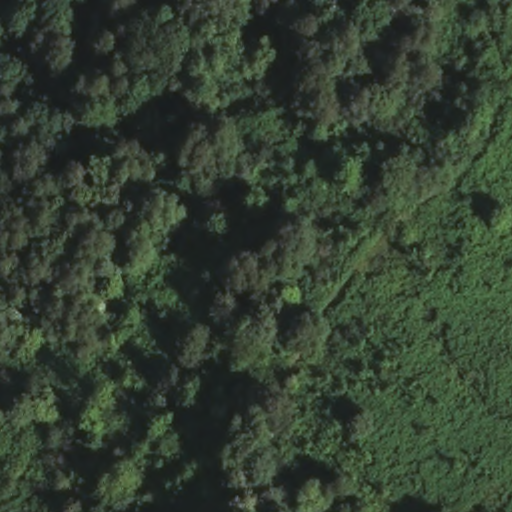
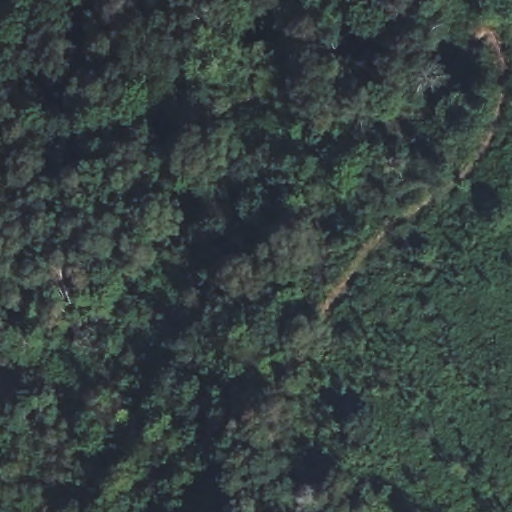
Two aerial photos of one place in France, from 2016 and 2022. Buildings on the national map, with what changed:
[]

